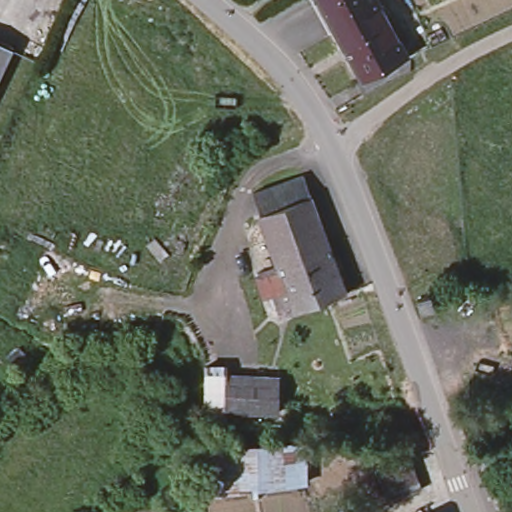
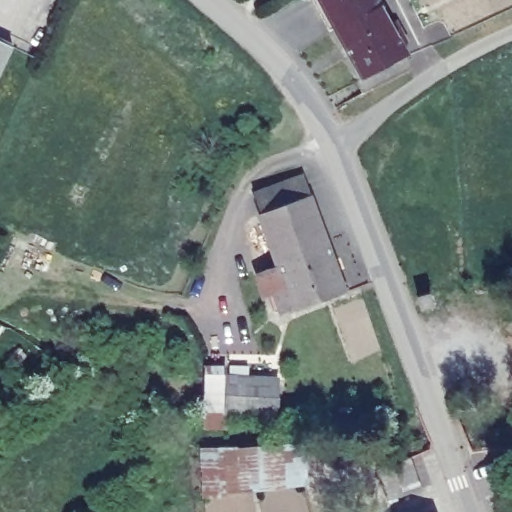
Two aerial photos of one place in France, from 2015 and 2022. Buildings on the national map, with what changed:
unchanged [(376,3),(330,27),(316,0),(374,0),(376,3)]
unchanged [(356,95),(350,83),(357,79),(330,27),(376,3),(386,21),(391,18),(403,41),(398,43),(404,55),(404,69),(356,95)]
unchanged [(14,46),(0,76),(0,38),(14,46)]
unchanged [(249,187),(299,169),(307,192),(257,210),(249,187)]
unchanged [(307,192),(324,237),(271,255),(256,211),(257,210),(307,192)]
unchanged [(271,255),(324,237),(343,289),(289,309),(276,314),(266,286),(279,281),(271,255)]
unchanged [(226,368),(225,375),(276,377),(277,416),(224,415),(222,430),(201,428),(205,367),(226,368)]
unchanged [(305,445),(306,485),(208,499),(206,449),(305,445)]
unchanged [(409,459),(421,489),(390,500),(379,470),(409,459)]

